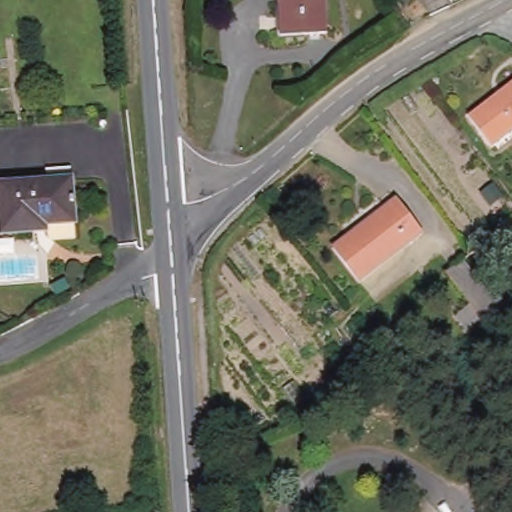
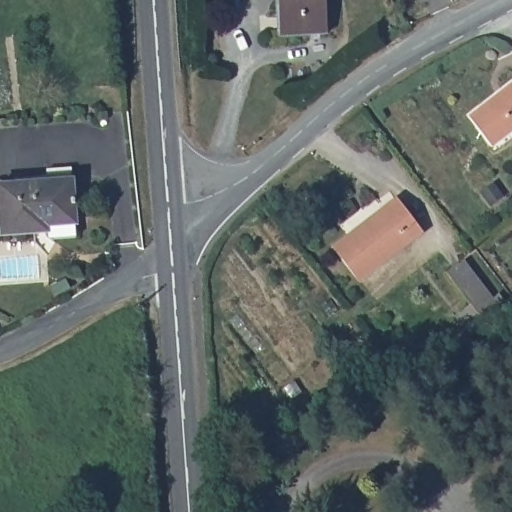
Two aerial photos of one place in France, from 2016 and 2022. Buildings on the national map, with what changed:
unchanged [(323,36),(278,37),(275,0),(322,0),(323,36)]
unchanged [(469,116),(512,82),(512,130),(492,146),(469,116)]
unchanged [(45,170),(70,169),(75,225),(33,227),(34,234),(0,236),(0,184),(45,182),(45,170)]
unchanged [(333,250),(396,201),(422,236),(359,283),(333,250)]
unchanged [(470,330),(456,312),(469,302),(444,272),(463,257),(500,307),(470,330)]

